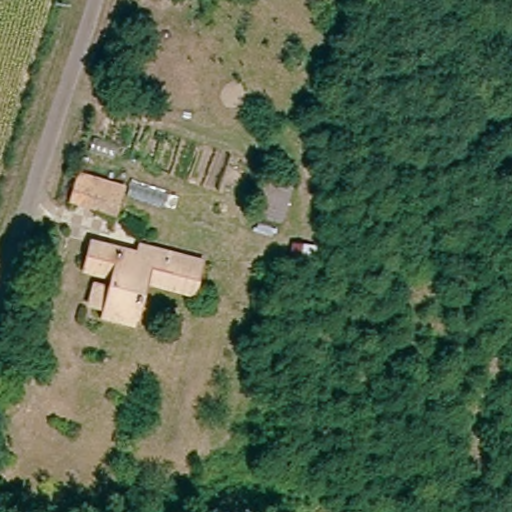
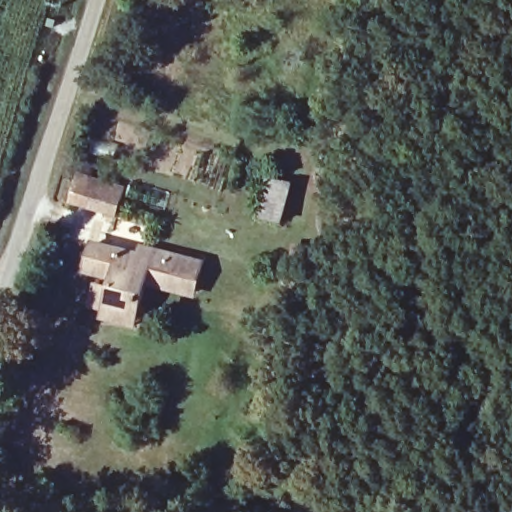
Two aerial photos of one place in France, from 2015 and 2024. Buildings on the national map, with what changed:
unchanged [(113,215),(68,199),(77,174),(122,190),(113,215)]
unchanged [(91,239),(139,252),(141,241),(202,258),(189,307),(134,292),(127,319),(95,310),(97,301),(83,297),(88,278),(106,282),(109,272),(84,265),(91,239)]

